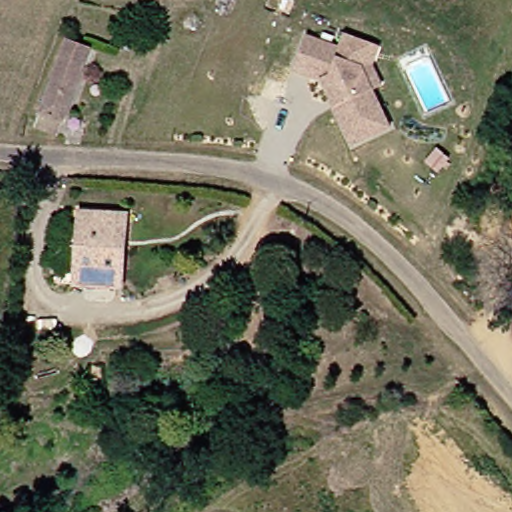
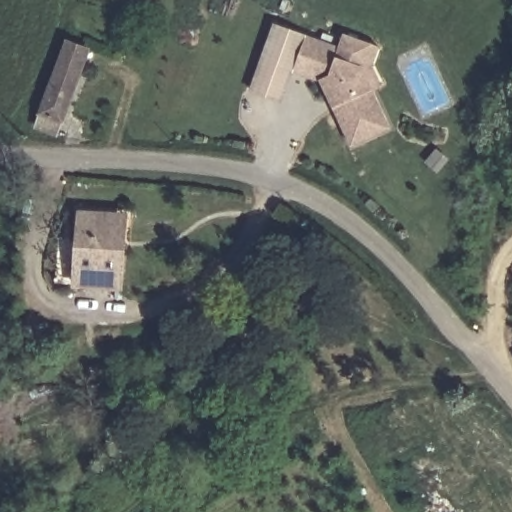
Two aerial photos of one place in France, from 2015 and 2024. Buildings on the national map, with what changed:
new [(273,23),(305,33),(292,63),(296,65),(282,102),(250,92),(273,23)]
unchanged [(307,28),(340,42),(346,29),(365,37),(382,44),(373,60),(384,77),(373,84),(393,121),(355,140),(320,75),(296,65),(292,63),(305,33),(307,28)]
unchanged [(61,110),(51,106),(46,119),(35,115),(61,42),(84,49),(61,110)]
unchanged [(71,279),(79,208),(121,212),(130,213),(126,246),(124,283),(71,279)]

